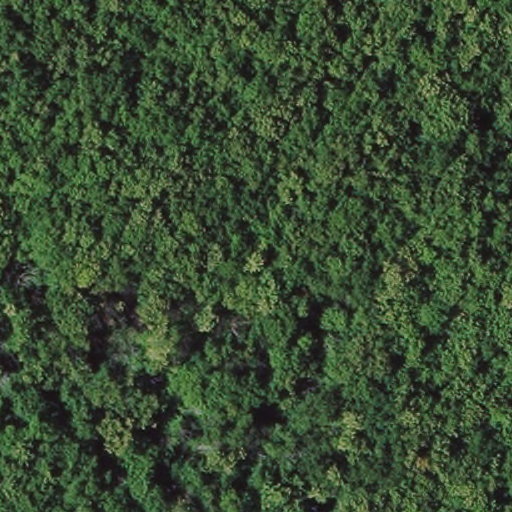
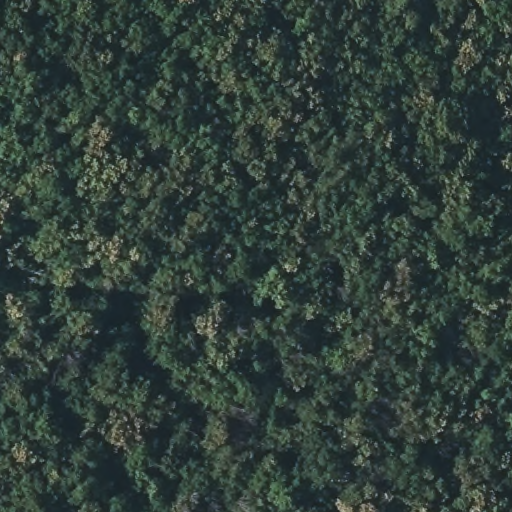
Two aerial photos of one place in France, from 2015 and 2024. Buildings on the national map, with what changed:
[]

